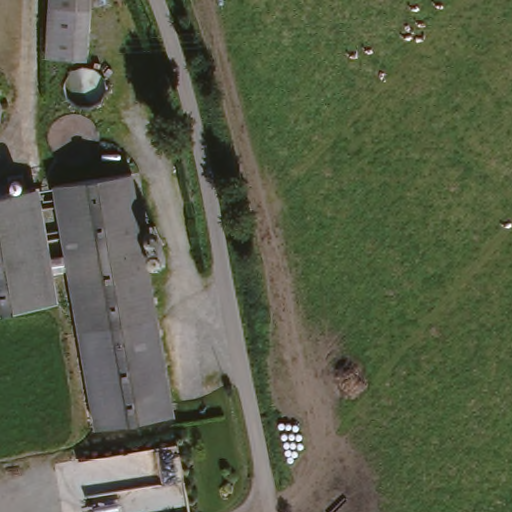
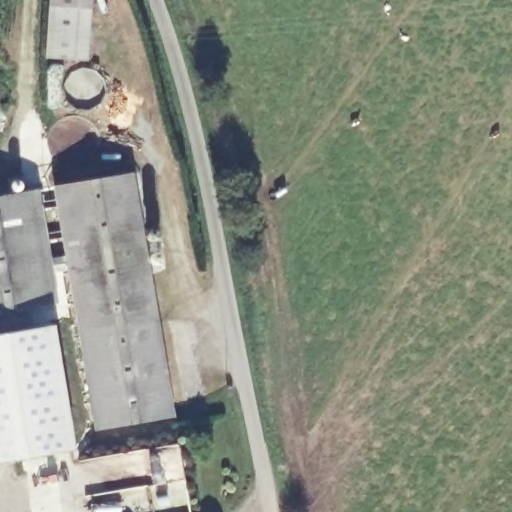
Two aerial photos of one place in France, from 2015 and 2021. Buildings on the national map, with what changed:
unchanged [(82,67),(41,65),(45,0),(86,0),(82,67)]
unchanged [(172,421),(90,432),(49,192),(127,181),(172,421)]
unchanged [(0,313),(0,198),(19,195),(31,194),(50,304),(39,307),(0,313)]
new [(54,326),(75,450),(0,463),(0,334),(54,326)]

